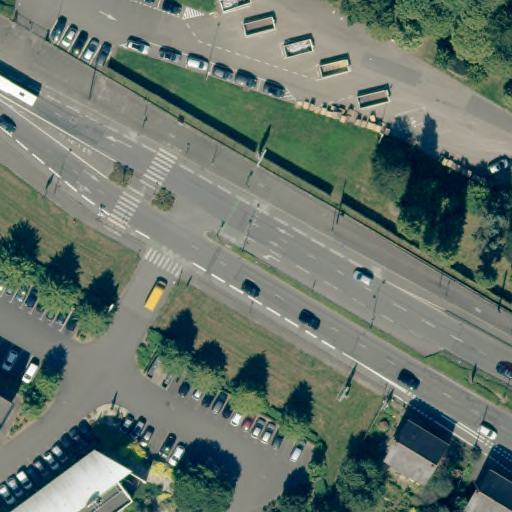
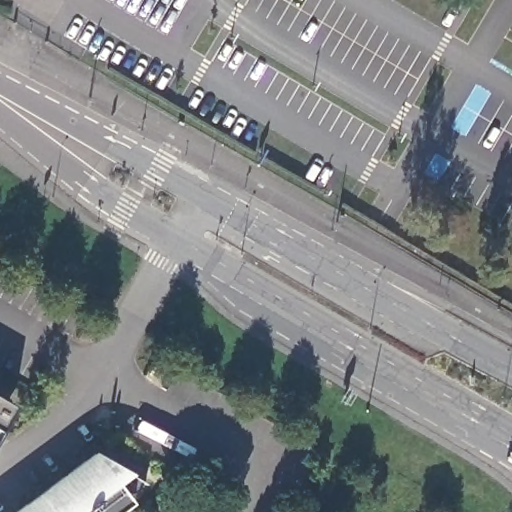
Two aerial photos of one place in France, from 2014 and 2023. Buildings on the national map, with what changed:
unchanged [(15,407),(6,421),(0,432),(0,398),(15,407)]
demolished [(386,460),(410,423),(448,447),(425,484),(386,460)]
unchanged [(16,512),(95,454),(119,469),(110,476),(131,503),(120,512),(16,512)]
demolished [(512,486),(512,512),(471,512),(468,511),(491,472),(512,486)]
unchanged [(355,481),(340,508),(330,503),(345,476),(355,481)]

